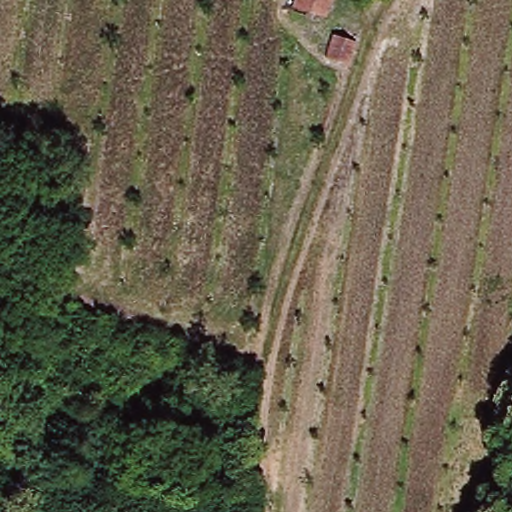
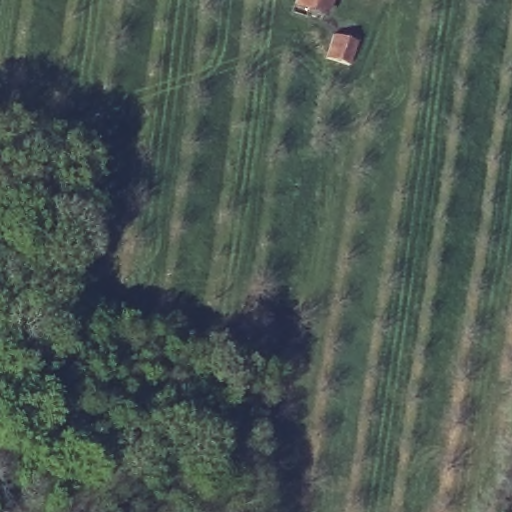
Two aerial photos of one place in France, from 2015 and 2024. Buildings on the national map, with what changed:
unchanged [(290,9),(292,0),(322,0),(317,16),(290,9)]
unchanged [(350,66),(324,59),(330,34),(356,40),(350,66)]

